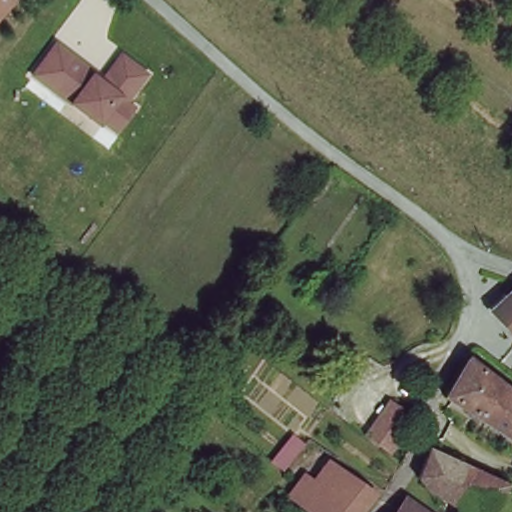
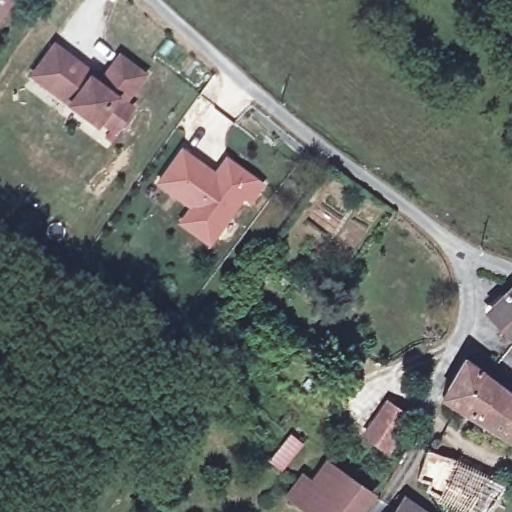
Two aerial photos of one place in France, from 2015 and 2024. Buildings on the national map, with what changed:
new [(0,15),(0,0),(12,0),(0,15)]
unchanged [(53,40),(69,51),(66,55),(99,80),(120,53),(145,72),(123,99),(131,106),(115,127),(98,114),(95,120),(31,69),(53,40)]
new [(181,146),(215,169),(225,155),(265,184),(250,205),(242,200),(209,245),(176,223),(187,207),(154,181),(181,146)]
unchanged [(495,325),(481,310),(507,282),(512,283),(512,310),(512,309),(495,325)]
unchanged [(477,377),(512,402),(512,442),(458,405),(477,377)]
unchanged [(367,435),(381,417),(372,411),(382,396),(406,412),(381,446),(367,435)]
unchanged [(483,512),(465,512),(470,505),(427,478),(432,471),(421,465),(431,447),(502,482),(483,512)]
new [(303,472),(313,478),(328,459),(377,495),(370,505),(344,486),(327,512),(304,512),(285,497),(303,472)]
unchanged [(365,512),(327,512),(344,486),(370,505),(365,512)]
unchanged [(416,512),(395,512),(404,501),(416,512)]

